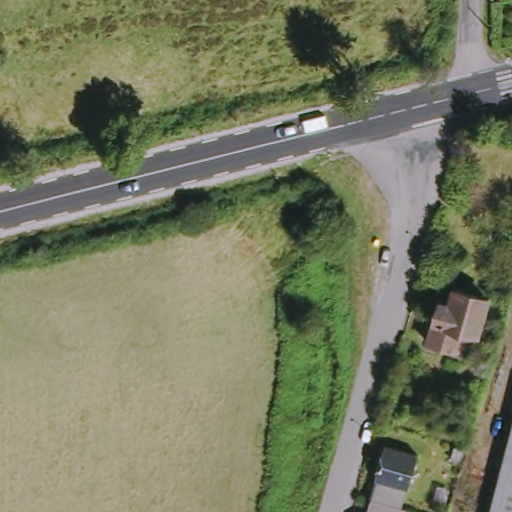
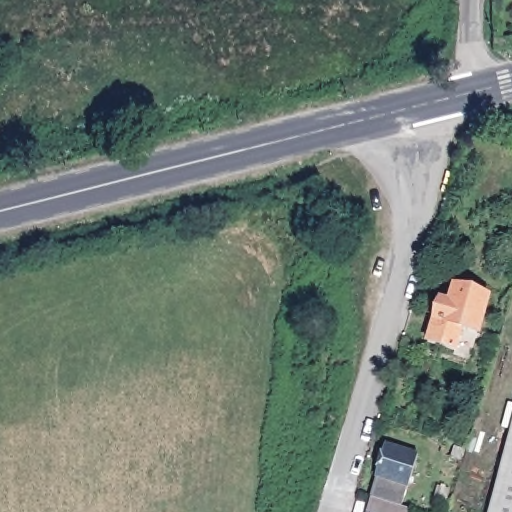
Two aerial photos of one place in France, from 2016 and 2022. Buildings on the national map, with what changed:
unchanged [(486,344),(478,341),(472,362),(458,362),(459,355),(431,344),(441,304),(446,287),(456,290),(491,303),(483,325),(490,332),(486,344)]
unchanged [(376,496),(390,444),(421,455),(408,504),(407,512),(371,512),(376,496)]
unchanged [(512,453),(512,512),(495,512),(512,453)]

